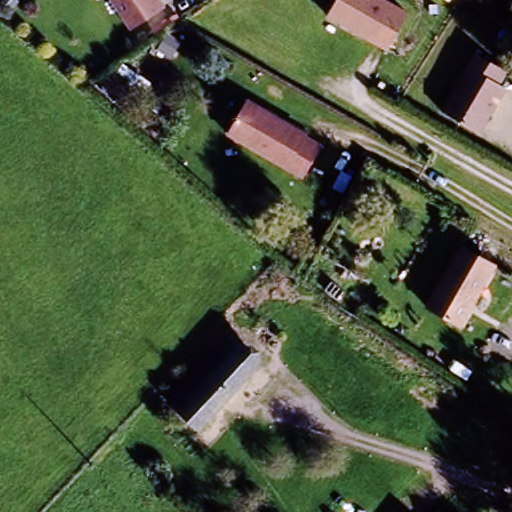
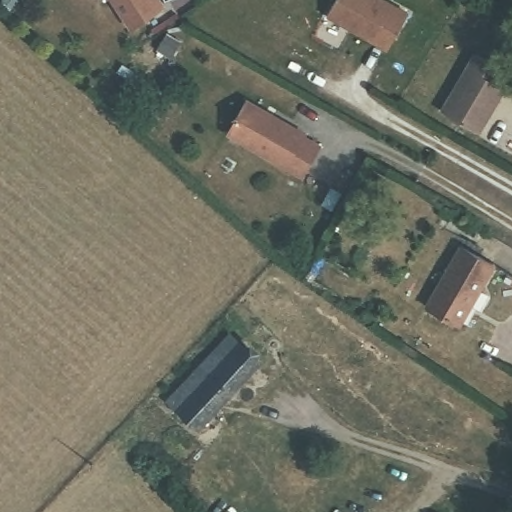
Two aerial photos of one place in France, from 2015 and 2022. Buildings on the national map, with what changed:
unchanged [(169,2),(132,28),(114,0),(168,0),(169,2)]
unchanged [(412,8),(392,47),(331,15),(338,0),(397,0),(412,8)]
unchanged [(470,58),(507,77),(500,91),(507,95),(482,137),(437,117),(470,58)]
unchanged [(296,180),(229,137),(249,100),(307,135),(306,144),(316,151),(296,180)]
unchanged [(488,265),(443,325),(415,302),(459,244),(488,265)]
unchanged [(231,348),(251,367),(197,422),(177,403),(231,348)]

